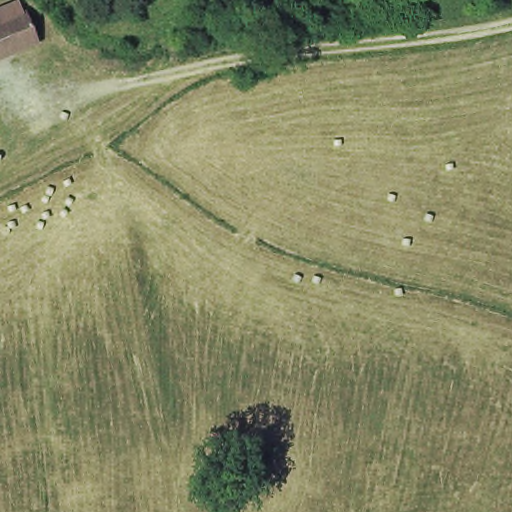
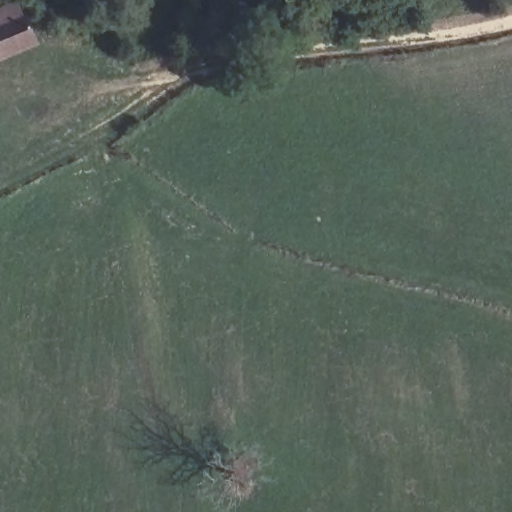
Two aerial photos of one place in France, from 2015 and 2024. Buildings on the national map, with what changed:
unchanged [(0,57),(0,23),(27,12),(40,44),(0,57)]

